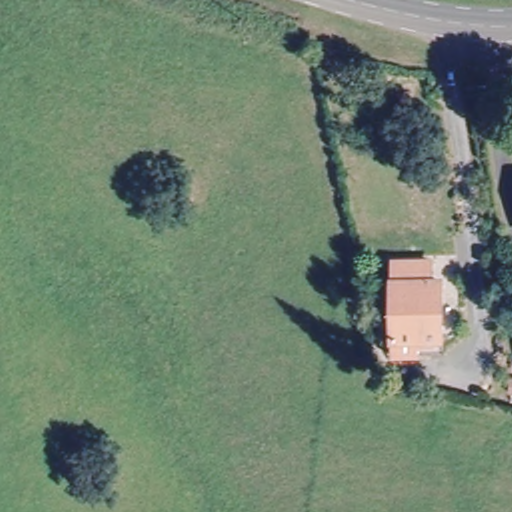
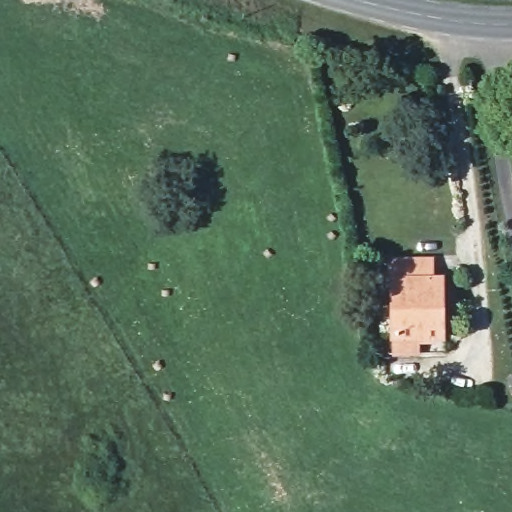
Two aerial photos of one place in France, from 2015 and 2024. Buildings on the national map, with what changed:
unchanged [(425,253),(427,280),(436,280),(440,327),(397,330),(391,256),(425,253)]
unchanged [(440,327),(452,326),(453,344),(389,349),(387,331),(397,330),(440,327)]

